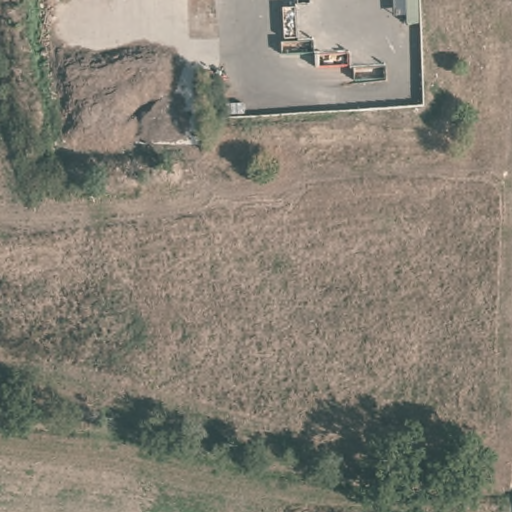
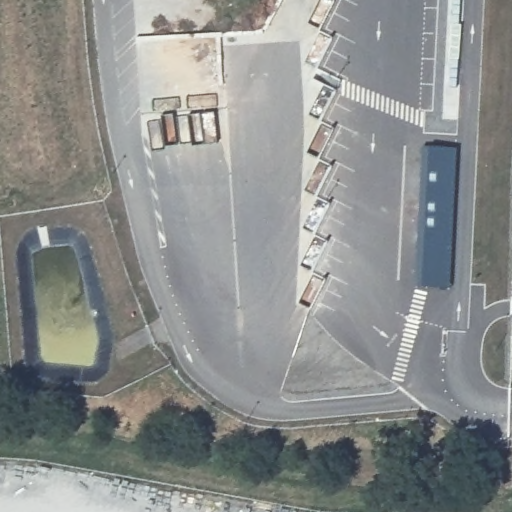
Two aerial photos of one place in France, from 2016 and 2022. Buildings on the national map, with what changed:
new [(456,149),(448,289),(421,287),(427,148),(456,149)]

